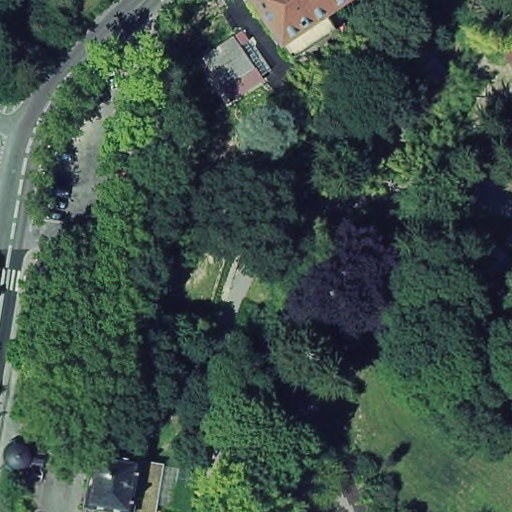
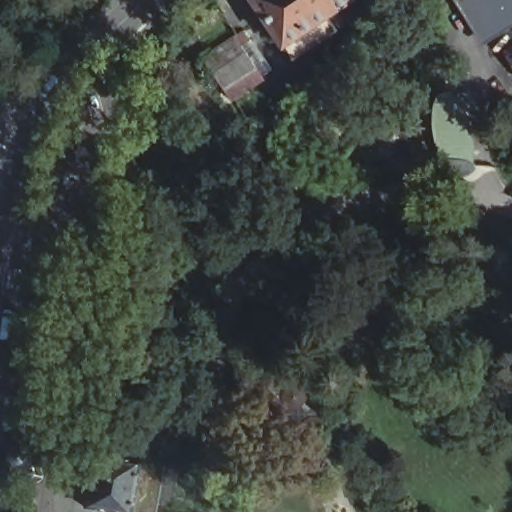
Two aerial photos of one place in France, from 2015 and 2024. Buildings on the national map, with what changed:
unchanged [(284,43),(254,0),(347,0),(326,14),(337,29),(294,58),(284,43)]
new [(453,0),(512,0),(512,25),(483,43),(453,0)]
unchanged [(231,97),(224,87),(223,87),(204,58),(242,32),(261,62),(268,72),(231,97)]
unchanged [(179,49),(168,56),(161,47),(171,39),(179,49)]
unchanged [(429,45),(429,46),(427,48),(445,75),(448,73),(449,74),(426,90),(424,89),(428,87),(409,60),(406,62),(406,61),(429,45)]
unchanged [(512,68),(504,56),(512,51),(512,68)]
unchanged [(291,383),(293,383),(294,383),(295,383),(296,383),(297,383),(298,383),(299,384),(300,384),(301,385),(302,386),(303,386),(303,387),(304,387),(304,388),(304,389),(305,390),(305,391),(306,392),(306,393),(306,394),(306,395),(305,396),(305,397),(305,398),(304,399),(304,400),(304,401),(303,401),(303,402),(301,402),(301,403),(300,404),(299,404),(298,405),(297,405),(296,405),(294,405),(293,405),(291,405),(290,404),(289,404),(288,403),(286,402),(286,401),(285,400),(284,399),(284,398),(284,397),(284,396),(283,395),(283,394),(283,393),(284,392),(284,391),(284,390),(284,389),(285,388),(286,387),(286,386),(287,386),(288,385),(289,384),(290,384),(291,383)]
unchanged [(314,418),(315,418),(316,418),(317,418),(318,418),(319,419),(321,420),(321,421),(322,421),(323,422),(323,423),(324,423),(324,424),(324,425),(325,426),(325,427),(325,428),(325,429),(325,430),(325,431),(324,432),(324,433),(324,434),(324,435),(323,436),(322,437),(321,437),(321,438),(320,438),(319,439),(318,439),(318,440),(316,440),(315,440),(314,440),(313,440),(312,440),(311,440),(309,439),(308,438),(307,438),(306,437),(306,436),(305,436),(304,435),(304,434),(304,433),(303,432),(303,431),(303,430),(303,429),(303,428),(303,427),(304,426),(304,425),(304,424),(304,423),(305,422),(306,422),(306,421),(307,420),(308,420),(309,419),(310,419),(311,418),(312,418),(313,418),(314,418)]
unchanged [(12,442),(13,442),(14,442),(15,441),(16,441),(17,441),(18,441),(19,441),(20,441),(21,441),(22,441),(23,441),(24,441),(25,442),(26,443),(28,443),(28,444),(29,444),(30,445),(30,446),(31,447),(31,448),(32,448),(33,449),(33,450),(33,451),(33,452),(33,453),(34,454),(34,455),(34,456),(33,457),(33,458),(33,459),(33,460),(33,461),(32,462),(31,463),(31,464),(30,465),(29,465),(29,466),(28,467),(26,468),(25,468),(24,469),(23,469),(21,470),(20,470),(19,470),(18,470),(16,470),(15,469),(14,469),(13,469),(13,468),(12,468),(11,467),(10,467),(9,466),(8,465),(8,464),(7,463),(6,462),(6,461),(5,460),(5,459),(5,458),(5,457),(4,456),(4,454),(5,453),(5,452),(5,451),(5,450),(6,449),(6,448),(7,447),(8,447),(8,446),(9,445),(9,444),(10,444),(11,443),(12,442)]
unchanged [(101,452),(143,460),(133,511),(133,512),(114,512),(85,507),(94,456),(95,451),(101,452)]
unchanged [(164,464),(155,512),(136,512),(133,511),(143,460),(164,464)]

